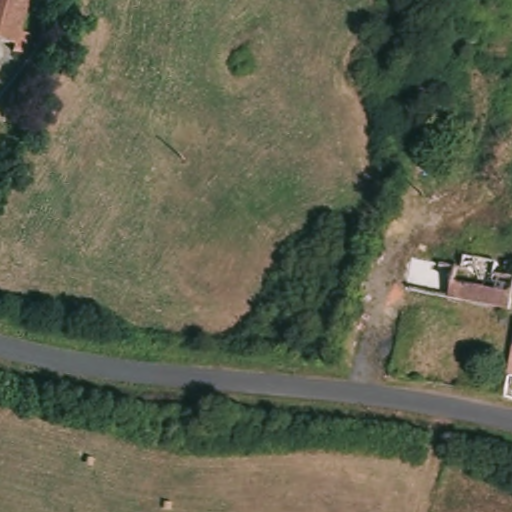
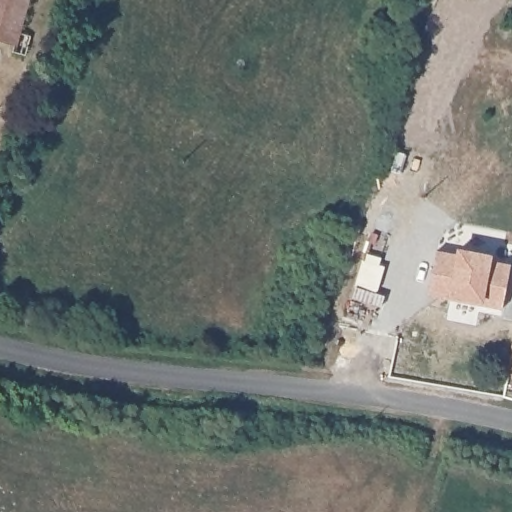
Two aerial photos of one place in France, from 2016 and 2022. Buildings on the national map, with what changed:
unchanged [(0,39),(0,0),(28,0),(19,43),(0,39)]
demolished [(461,251),(494,257),(491,270),(501,272),(505,261),(512,262),(512,320),(494,316),(495,307),(406,289),(412,257),(458,266),(461,251)]
unchanged [(512,365),(512,394),(507,393),(512,365)]

